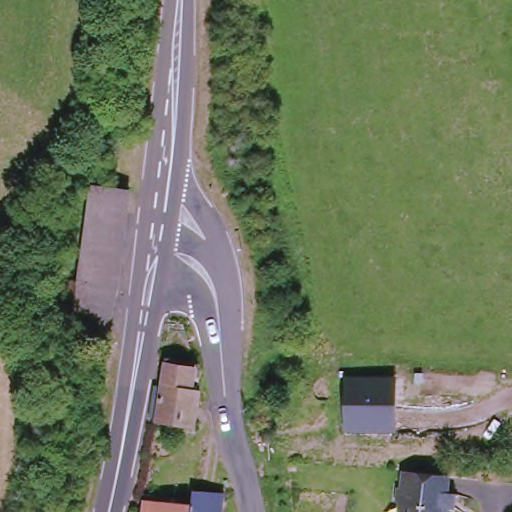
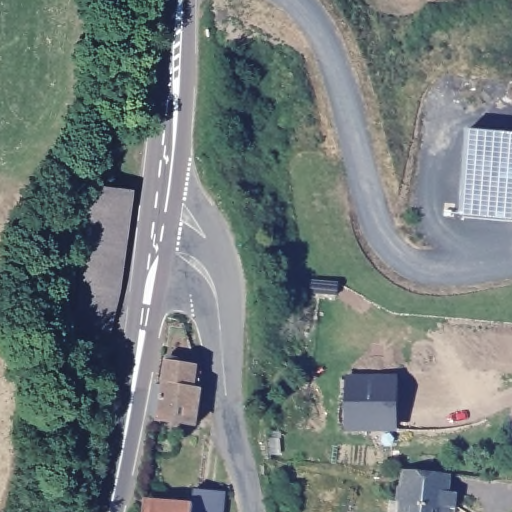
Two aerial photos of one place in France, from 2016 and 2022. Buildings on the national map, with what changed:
new [(512,135),(512,220),(459,215),(467,130),(512,135)]
unchanged [(73,283),(82,284),(95,182),(132,186),(124,275),(109,332),(94,330),(68,326),(73,283)]
unchanged [(202,389),(197,425),(162,418),(162,416),(155,415),(161,383),(167,384),(171,361),(199,367),(195,387),(202,389)]
unchanged [(343,433),(344,376),(397,377),(394,432),(343,433)]
demolished [(301,404),(303,412),(316,410),(317,446),(302,465),(286,467),(275,406),(301,404)]
unchanged [(408,508),(402,507),(403,490),(411,491),(412,475),(456,478),(454,495),(465,496),(463,512),(458,512),(408,512),(408,508)]
unchanged [(196,504),(197,489),(225,492),(224,512),(195,512),(196,504)]
unchanged [(152,502),(196,504),(195,512),(151,512),(152,502)]

